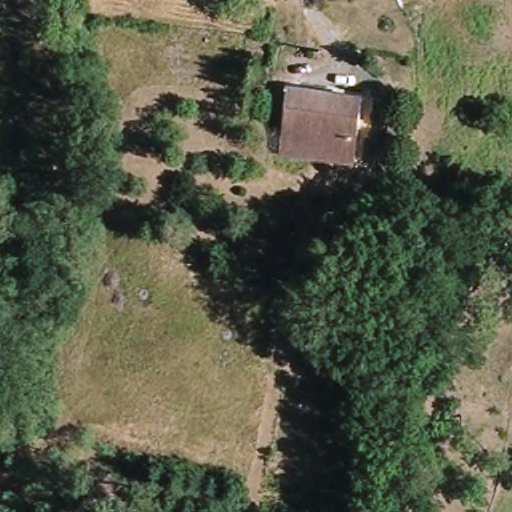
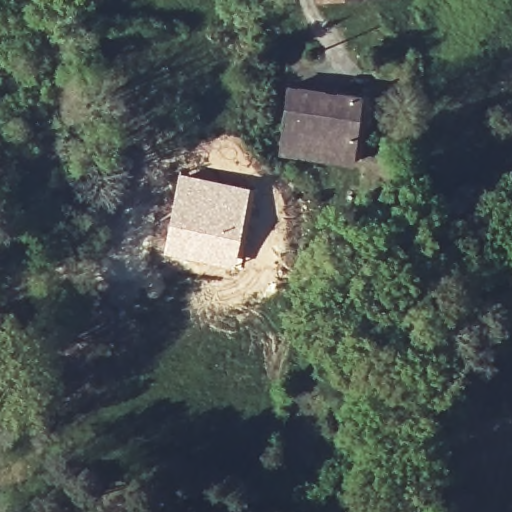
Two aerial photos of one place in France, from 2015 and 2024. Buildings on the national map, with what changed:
unchanged [(324,1),(323,0),(330,0),(324,1)]
unchanged [(362,97),(355,158),(282,150),(288,88),(362,97)]
new [(177,171),(249,185),(234,268),(163,253),(177,171)]
unchanged [(382,213),(389,183),(404,186),(397,216),(382,213)]

